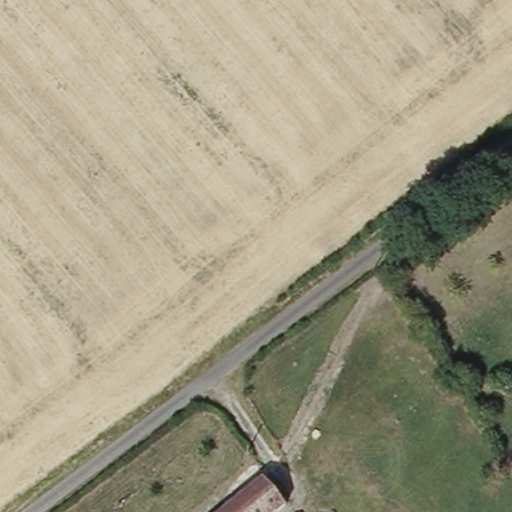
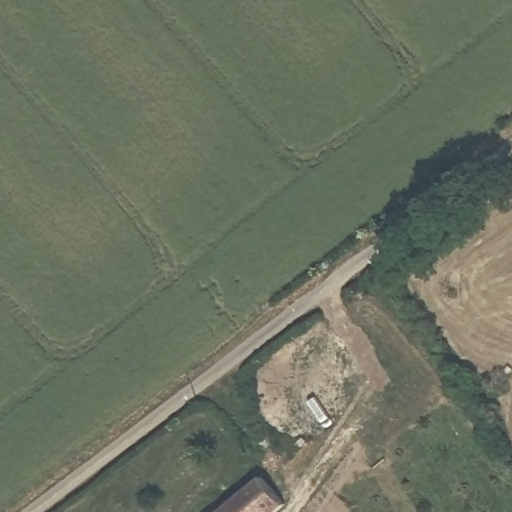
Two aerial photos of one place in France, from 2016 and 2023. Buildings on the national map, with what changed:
unchanged [(289,511),(288,512),(230,512),(267,483),(289,511)]

